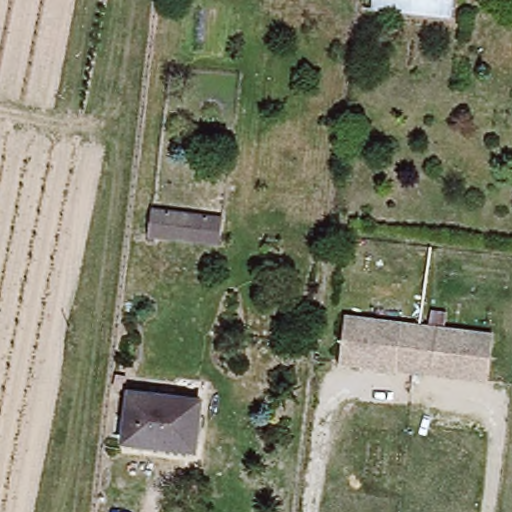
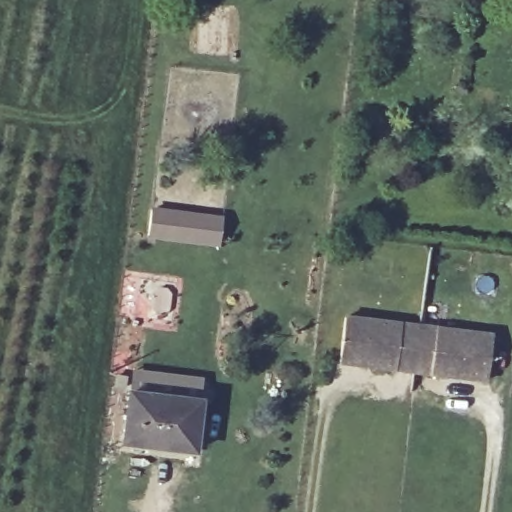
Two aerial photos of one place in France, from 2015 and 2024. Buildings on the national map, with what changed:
demolished [(452,19),(370,9),(370,0),(454,0),(452,19)]
unchanged [(222,219),(221,243),(157,237),(157,246),(147,245),(152,211),(222,219)]
unchanged [(343,319),(492,335),(487,379),(338,363),(343,319)]
unchanged [(200,402),(195,452),(124,443),(127,394),(200,402)]

